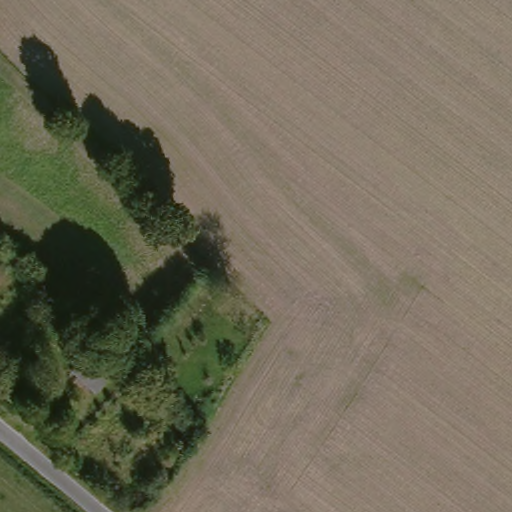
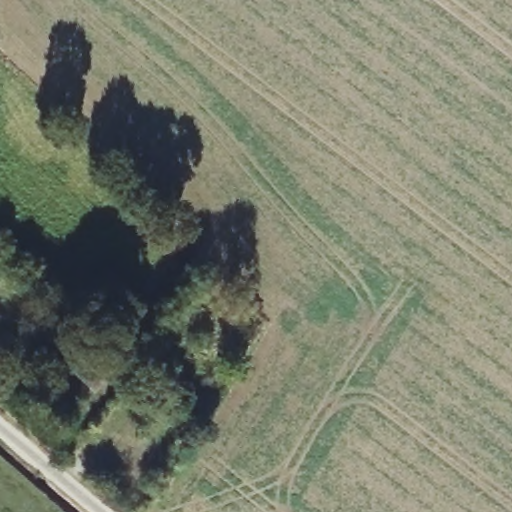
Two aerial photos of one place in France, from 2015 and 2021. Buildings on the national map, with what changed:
unchanged [(104,387),(88,407),(63,385),(80,367),(104,387)]

